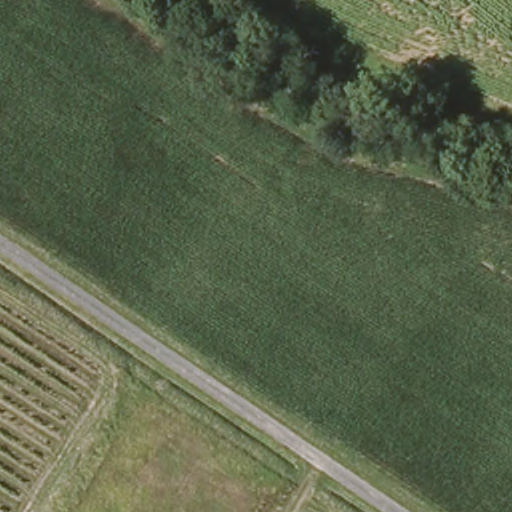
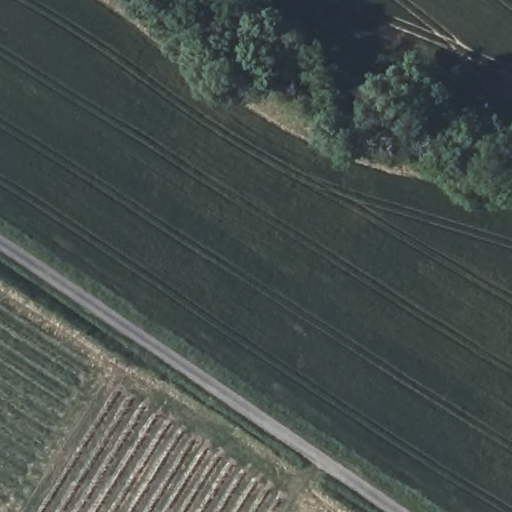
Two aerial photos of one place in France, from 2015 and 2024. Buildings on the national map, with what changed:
[]

